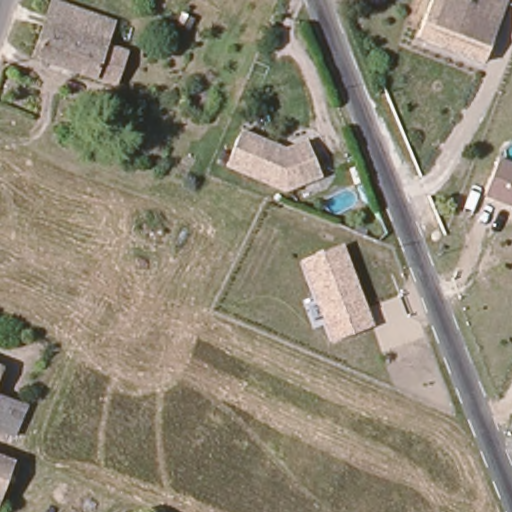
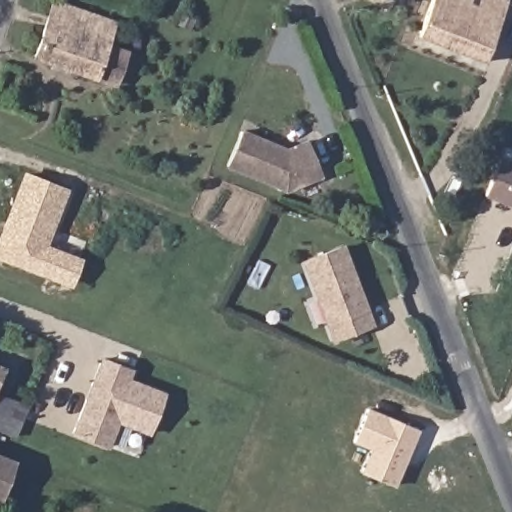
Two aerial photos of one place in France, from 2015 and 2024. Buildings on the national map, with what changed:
unchanged [(102,49),(123,57),(112,86),(32,56),(52,0),(112,22),(102,49)]
unchanged [(508,22),(492,64),(425,37),(439,0),(488,0),(484,13),(508,22)]
unchanged [(330,177),(292,191),(234,167),(247,134),(277,147),(276,152),(288,156),(297,154),(297,151),(317,144),(330,177)]
unchanged [(486,199),(501,160),(512,164),(512,209),(486,199)]
new [(83,257),(72,287),(0,261),(0,231),(23,171),(69,189),(48,244),(83,257)]
unchanged [(331,341),(302,260),(343,245),(373,326),(331,341)]
new [(100,356),(132,369),(130,378),(166,392),(149,436),(119,424),(109,449),(70,434),(100,356)]
unchanged [(0,371),(0,366),(2,367),(0,371)]
new [(359,472),(369,449),(352,442),(367,408),(420,430),(395,487),(359,472)]
unchanged [(0,455),(14,460),(0,496),(0,455)]

